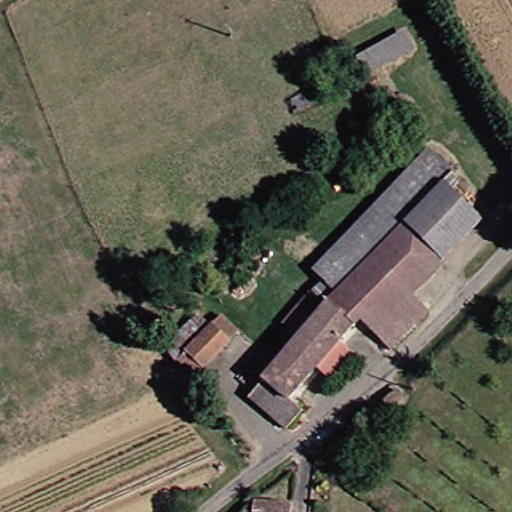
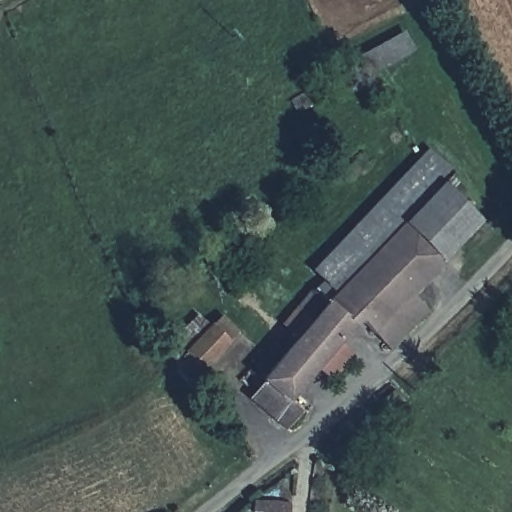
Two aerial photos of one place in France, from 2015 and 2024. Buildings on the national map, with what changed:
unchanged [(398,31),(409,51),(358,78),(348,59),(398,31)]
unchanged [(412,294),(375,333),(360,318),(287,396),(298,408),(281,429),(245,397),(291,343),(279,331),(325,284),(312,272),(430,151),(448,170),(437,182),(385,242),(426,279),(412,294)]
unchanged [(385,242),(437,182),(480,222),(426,279),(385,242)]
unchanged [(412,294),(430,308),(392,348),(375,333),(412,294)]
unchanged [(210,328),(224,343),(200,363),(189,349),(210,328)]
unchanged [(287,504),(286,512),(247,512),(248,502),(287,504)]

